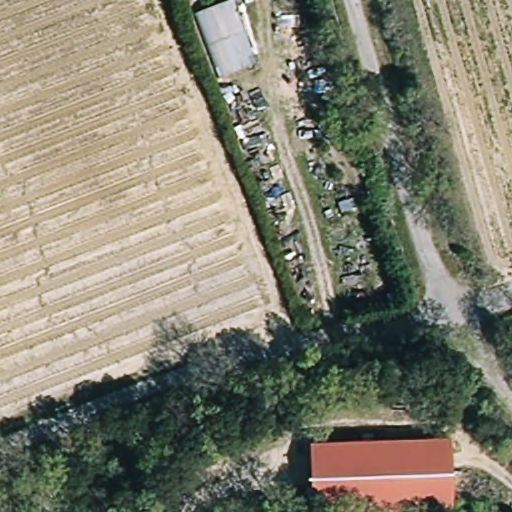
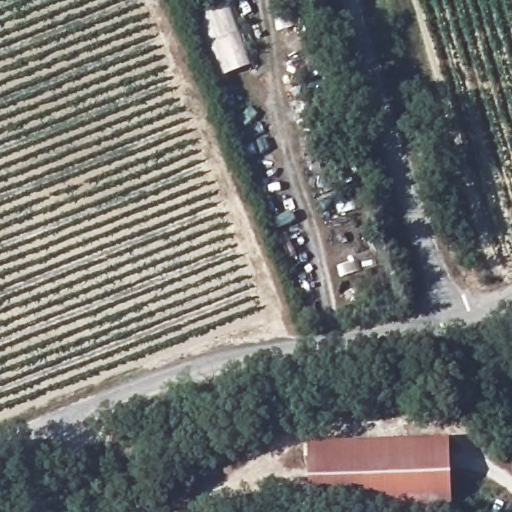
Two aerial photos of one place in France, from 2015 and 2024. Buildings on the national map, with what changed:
unchanged [(219,79),(195,16),(231,2),(254,63),(219,79)]
unchanged [(319,445),(459,445),(458,512),(317,512),(319,445)]

